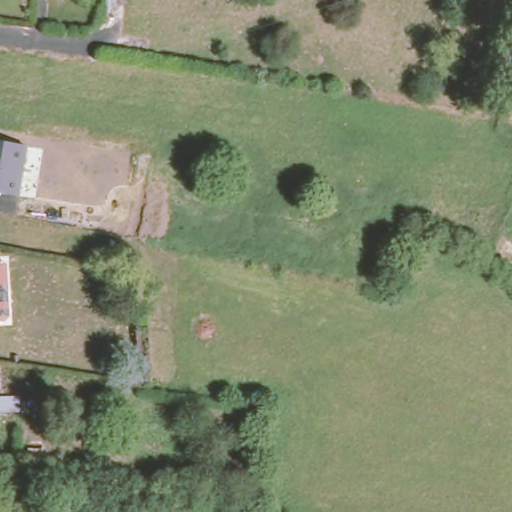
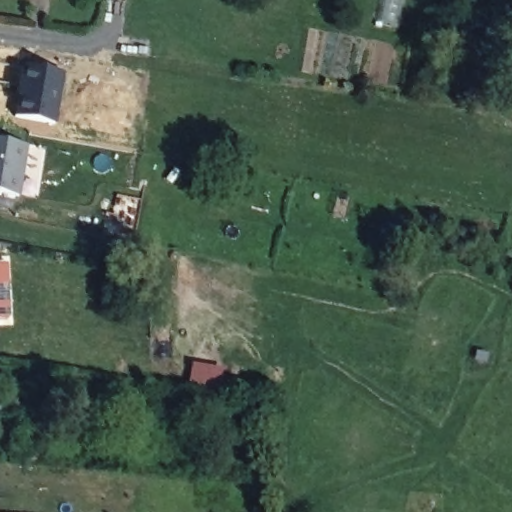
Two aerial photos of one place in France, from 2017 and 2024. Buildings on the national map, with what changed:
new [(24,65),(64,74),(55,124),(14,116),(24,65)]
unchanged [(28,145),(20,197),(0,194),(0,141),(28,145)]
unchanged [(20,410),(0,412),(0,395),(20,394),(20,410)]

